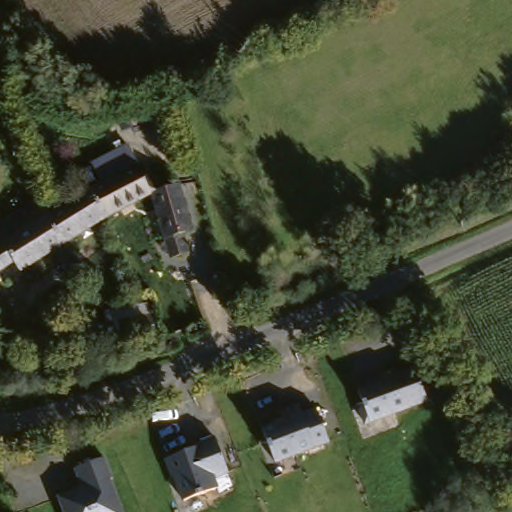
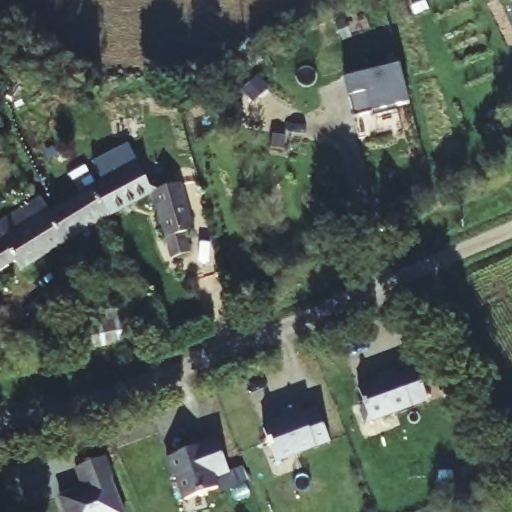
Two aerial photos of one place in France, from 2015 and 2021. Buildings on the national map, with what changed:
new [(409,104),(372,115),(371,110),(354,116),(351,99),(345,99),(343,81),(400,65),(409,104)]
unchanged [(15,274),(9,265),(0,250),(0,249),(44,217),(90,185),(78,167),(114,145),(125,163),(163,180),(173,174),(194,218),(182,222),(189,239),(171,247),(141,192),(108,211),(99,217),(15,274)]
unchanged [(44,217),(0,249),(0,223),(35,199),(44,217)]
unchanged [(9,265),(0,271),(0,250),(9,265)]
unchanged [(145,310),(154,341),(90,360),(81,328),(145,310)]
unchanged [(364,422),(358,408),(361,402),(356,387),(379,378),(377,373),(395,366),(397,372),(414,366),(426,398),(364,422)]
unchanged [(272,462),(260,429),(282,421),(278,411),(296,404),(299,413),(314,408),(327,441),(272,462)]
unchanged [(225,472),(209,478),(213,488),(180,502),(170,476),(168,477),(162,459),(196,446),(196,443),(211,437),(225,472)]
unchanged [(81,485),(74,465),(104,453),(112,473),(109,475),(124,512),(64,512),(57,494),(81,485)]

